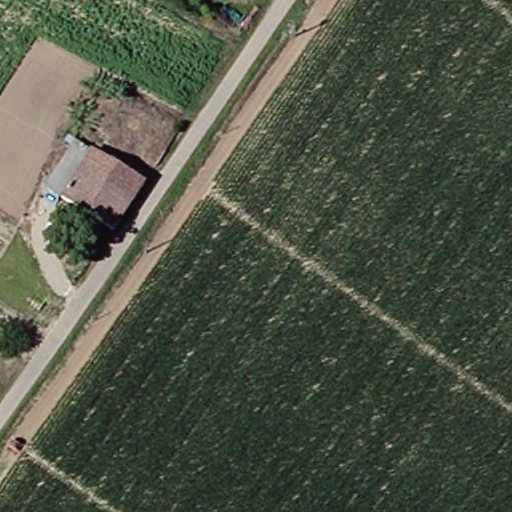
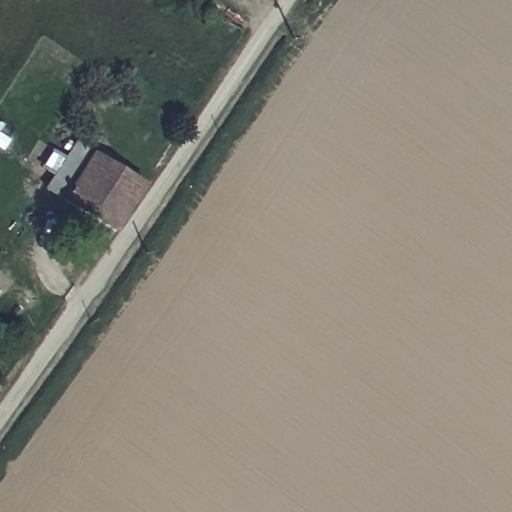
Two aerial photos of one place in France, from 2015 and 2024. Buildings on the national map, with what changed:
unchanged [(35,184),(67,138),(135,183),(104,231),(35,184)]

